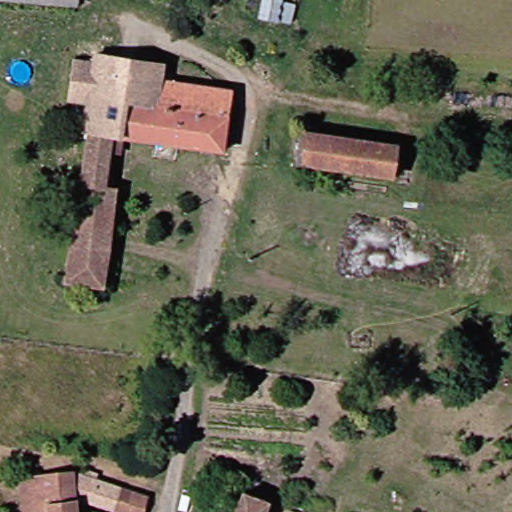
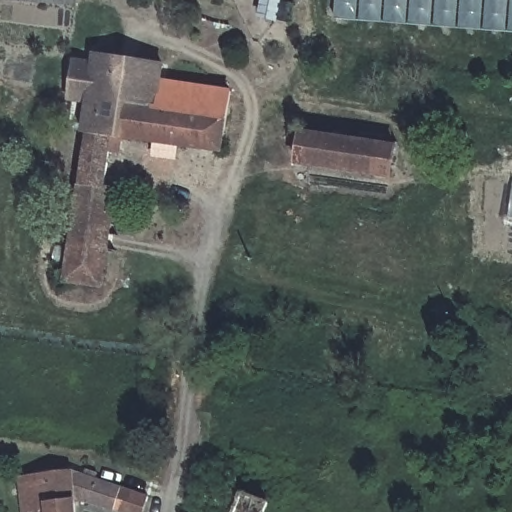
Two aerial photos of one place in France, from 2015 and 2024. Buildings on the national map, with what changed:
unchanged [(0,1),(0,0),(68,0),(67,6),(0,1)]
new [(258,18),(262,0),(282,0),(277,22),(258,18)]
new [(336,0),(512,0),(512,32),(335,19),(336,0)]
unchanged [(89,185),(102,187),(89,284),(56,279),(74,131),(70,129),(81,51),(157,64),(160,84),(232,90),(224,149),(161,143),(159,158),(139,154),(139,139),(96,133),(89,185)]
unchanged [(386,149),(381,178),(289,163),(294,132),(386,149)]
new [(512,208),(512,215),(511,215),(512,208)]
unchanged [(68,503),(68,512),(18,512),(14,478),(18,478),(15,466),(27,464),(26,473),(69,467),(142,489),(138,512),(122,512),(68,503)]
demolished [(219,512),(185,512),(190,500),(219,512)]
unchanged [(237,501),(259,510),(258,512),(232,512),(237,501)]

